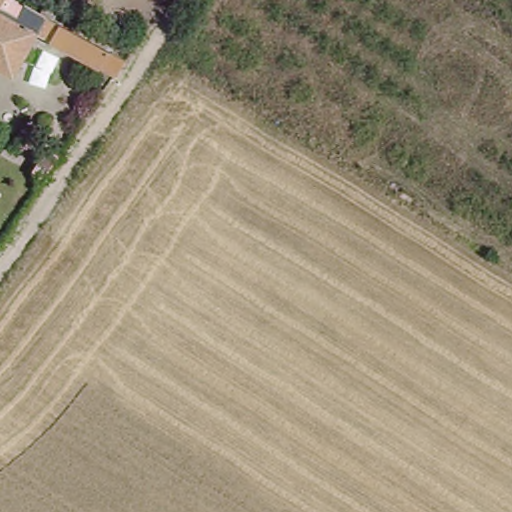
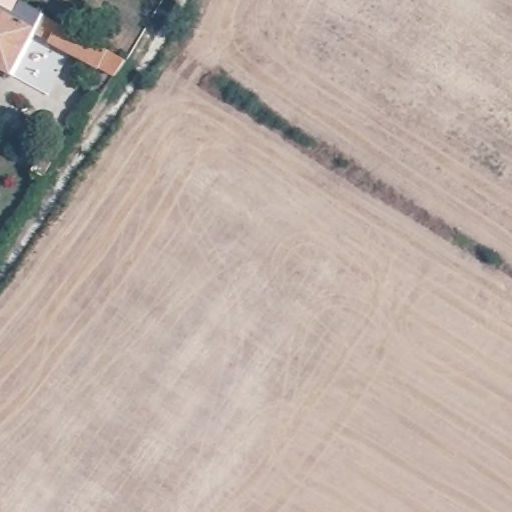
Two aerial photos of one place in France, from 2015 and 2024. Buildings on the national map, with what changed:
unchanged [(0,69),(0,5),(38,26),(44,16),(118,59),(110,71),(36,30),(10,74),(0,69)]
unchanged [(50,143),(64,151),(50,171),(38,165),(50,143)]

